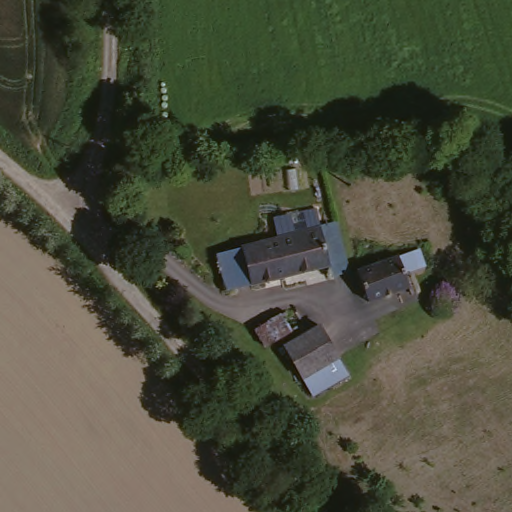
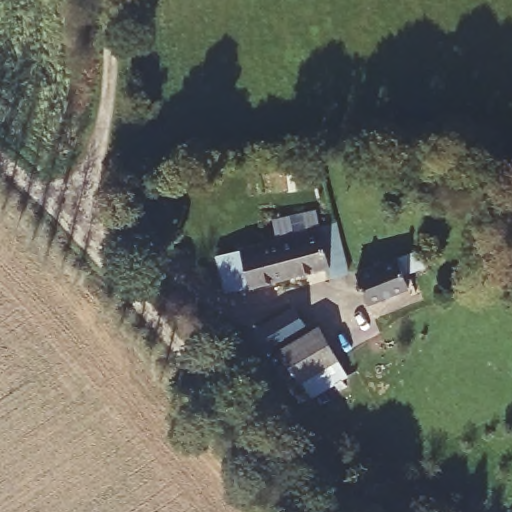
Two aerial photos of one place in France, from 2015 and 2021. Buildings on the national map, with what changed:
unchanged [(335,230),(344,263),(348,277),(334,280),(332,268),(252,287),(244,250),(324,232),(335,230)]
unchanged [(242,245),(244,250),(252,287),(229,292),(219,250),(242,245)]
unchanged [(373,301),(364,268),(405,257),(425,252),(430,270),(409,275),(412,287),(373,301)]
unchanged [(287,317),(297,336),(268,350),(260,332),(287,317)]
unchanged [(324,332),(349,381),(314,397),(289,350),(324,332)]

